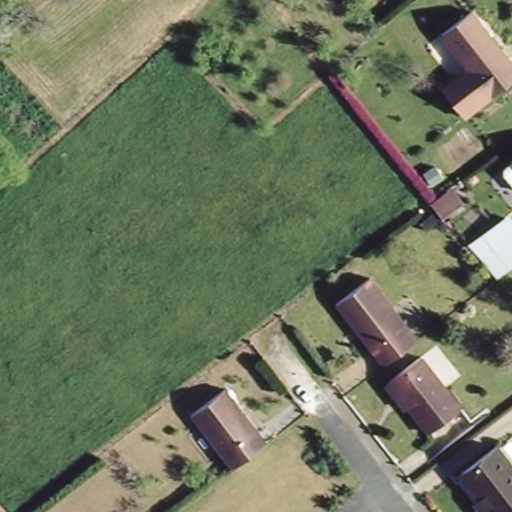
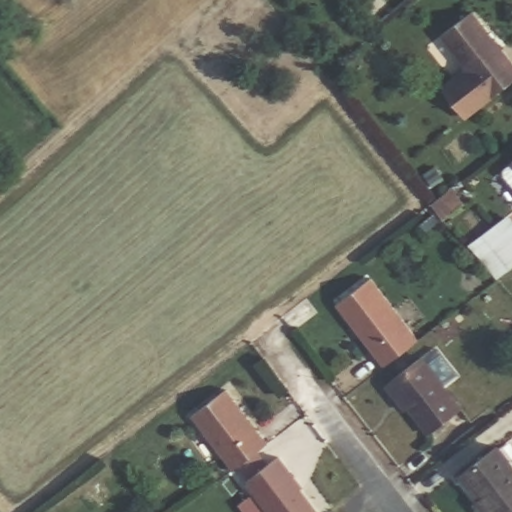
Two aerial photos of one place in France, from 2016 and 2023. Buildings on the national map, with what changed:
unchanged [(512,67),(512,77),(464,120),(439,92),(462,72),(464,64),(439,35),(464,12),(512,67)]
unchanged [(505,161),(512,155),(512,170),(505,161)]
unchanged [(450,217),(444,222),(436,213),(432,209),(437,204),(452,192),(456,197),(464,207),(450,217)]
unchanged [(512,213),(512,267),(497,280),(467,242),(510,210),(512,213)]
unchanged [(335,303),(367,278),(415,340),(382,365),(335,303)]
unchanged [(398,400),(385,382),(420,357),(459,408),(429,430),(407,401),(402,405),(398,400)]
unchanged [(191,415),(224,389),(266,443),(232,469),(191,415)]
unchanged [(477,496),(457,470),(490,445),(512,470),(512,511),(511,512),(480,512),(471,501),(477,496)]
new [(299,481),(297,482),(320,512),(269,512),(245,482),(279,456),(299,481)]

